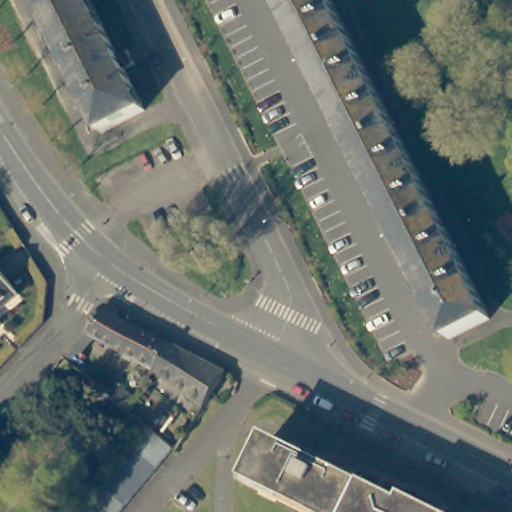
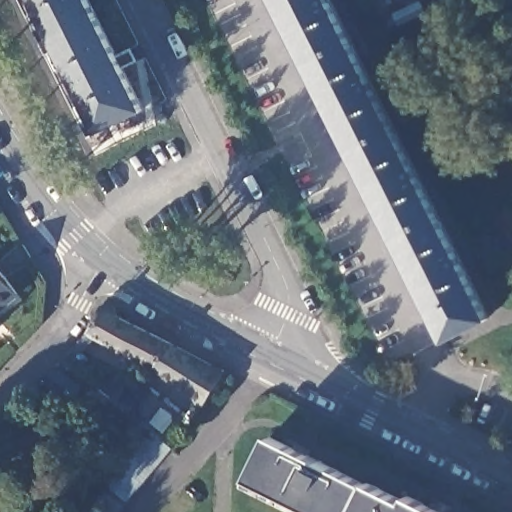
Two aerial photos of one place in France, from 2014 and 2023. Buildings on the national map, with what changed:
unchanged [(123,74),(144,115),(100,137),(96,130),(72,84),(49,37),(30,0),(86,0),(117,61),(126,56),(132,69),(123,74)]
unchanged [(284,10),(279,0),(330,0),(488,319),(448,340),(424,291),(413,268),(381,204),(370,182),(337,117),(326,95),(295,31),(284,10)]
unchanged [(0,308),(0,271),(18,295),(0,308)]
unchanged [(167,346),(154,371),(149,367),(85,332),(99,317),(97,313),(97,309),(100,306),(104,304),(108,304),(111,306),(114,308),(115,312),(115,316),(160,339),(169,343),(167,346)]
unchanged [(201,410),(154,371),(167,346),(169,343),(226,371),(201,410)]
unchanged [(55,366),(76,387),(67,400),(43,379),(55,366)]
unchanged [(112,398),(121,385),(137,399),(128,411),(112,398)]
unchanged [(103,405),(92,395),(99,387),(105,392),(110,396),(103,405)]
unchanged [(149,428),(170,448),(116,512),(81,512),(117,467),(149,428)]
unchanged [(269,443),(365,492),(366,489),(403,507),(406,502),(428,512),(304,512),(248,484),(269,443)]

